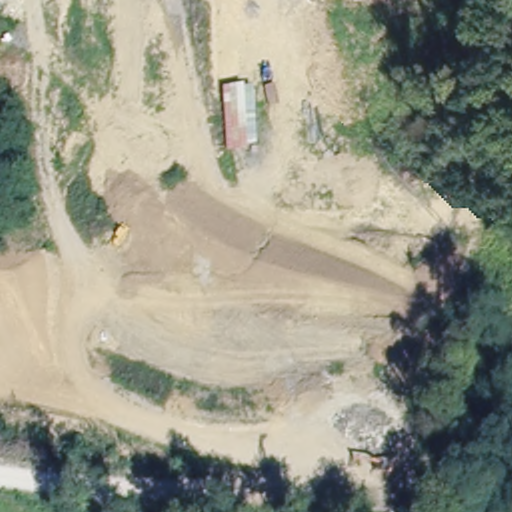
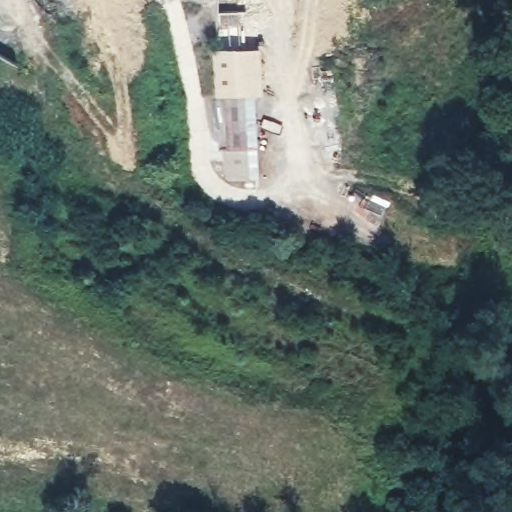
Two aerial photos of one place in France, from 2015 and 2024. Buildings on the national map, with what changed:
new [(260,47),(262,96),(254,97),(216,100),(211,50),(260,47)]
new [(254,97),(256,147),(227,149),(216,100),(254,97)]
new [(258,181),(227,181),(220,151),(227,151),(227,149),(256,147),(258,181)]

